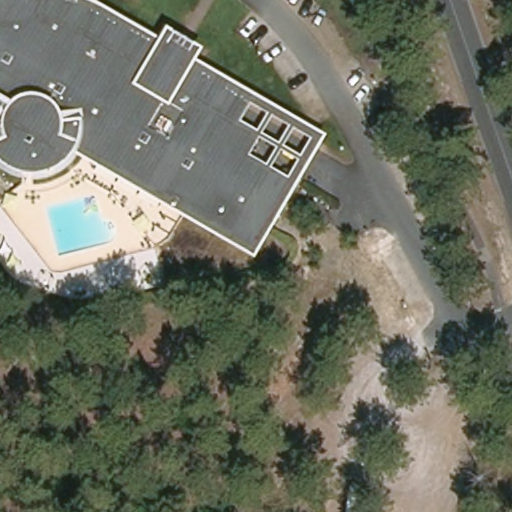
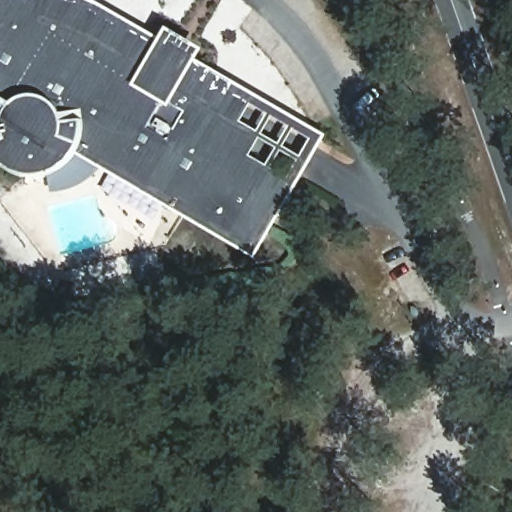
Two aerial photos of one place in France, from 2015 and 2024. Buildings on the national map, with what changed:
unchanged [(62,165),(43,174),(21,172),(3,162),(0,158),(0,0),(91,0),(161,42),(167,30),(205,47),(199,62),(326,138),(257,257),(75,154),(62,165)]

